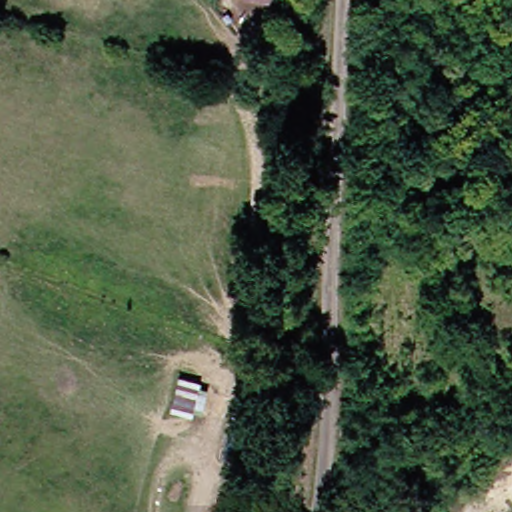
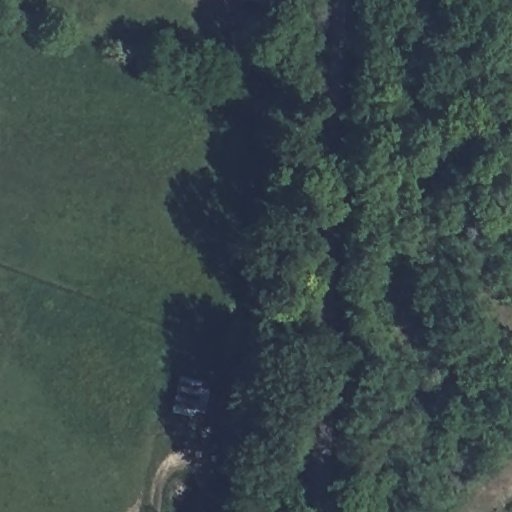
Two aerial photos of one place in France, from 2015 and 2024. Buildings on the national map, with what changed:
unchanged [(359,463),(358,504),(337,504),(339,463),(359,463)]

